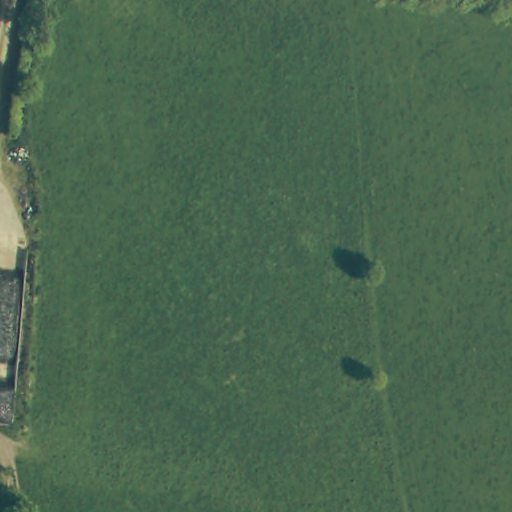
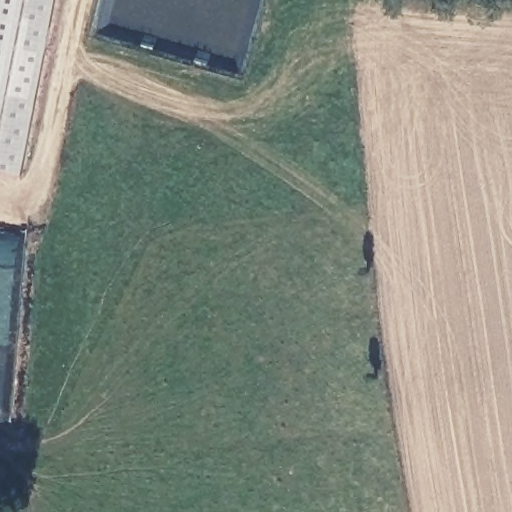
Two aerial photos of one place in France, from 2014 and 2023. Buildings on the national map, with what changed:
new [(24,177),(0,172),(0,0),(58,0),(24,177)]

